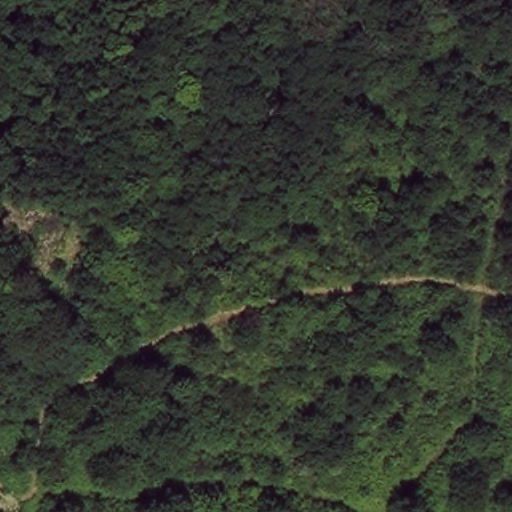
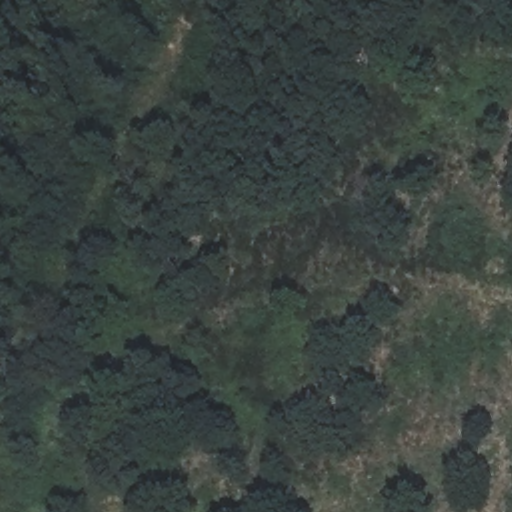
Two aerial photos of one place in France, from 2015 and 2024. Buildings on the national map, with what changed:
[]

